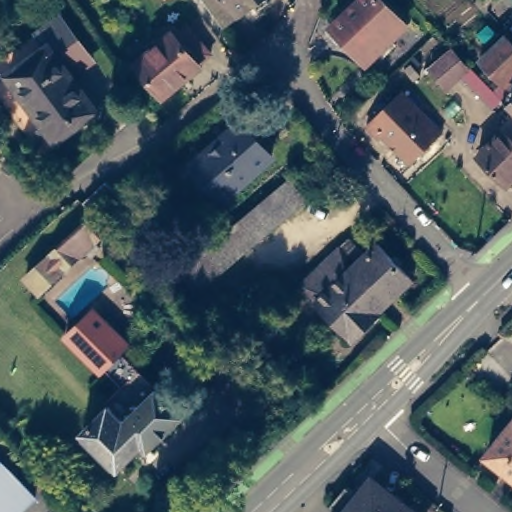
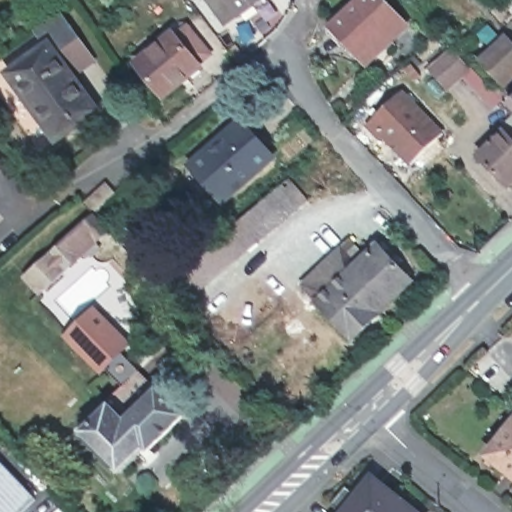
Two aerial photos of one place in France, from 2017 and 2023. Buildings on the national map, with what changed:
unchanged [(270,4),(259,12),(254,7),(225,27),(206,0),(267,0),(270,4)]
unchanged [(415,19),(377,54),(344,19),(365,0),(398,0),(415,19)]
unchanged [(90,44),(69,61),(102,104),(46,146),(0,84),(0,59),(66,12),(90,44)]
unchanged [(204,59),(192,70),(193,71),(158,99),(132,66),(166,39),(167,40),(180,31),(204,59)]
unchanged [(505,82),(483,60),(506,36),(512,42),(512,74),(505,82)]
unchanged [(225,55),(236,46),(244,55),(232,64),(225,55)]
unchanged [(501,97),(494,105),(463,72),(449,86),(433,69),(432,67),(454,46),(456,47),(501,97)]
unchanged [(402,88),(443,131),(411,162),(382,132),(380,135),(367,122),(402,88)]
unchanged [(508,131),(508,129),(506,127),(512,120),(512,182),(484,153),(508,131)]
unchanged [(266,149),(218,192),(187,157),(214,134),(219,138),(240,121),(266,149)]
unchanged [(289,176),(307,197),(244,250),(224,230),(289,176)]
unchanged [(314,226),(291,246),(278,232),(302,212),(314,226)]
unchanged [(109,229),(95,242),(101,247),(93,256),(86,250),(80,256),(77,257),(41,290),(27,276),(94,214),(109,229)]
unchanged [(244,250),(196,290),(177,268),(224,230),(244,250)]
unchanged [(362,252),(375,240),(410,277),(347,337),(312,300),(313,298),(298,282),(315,265),(314,264),(346,234),(362,252)]
unchanged [(61,336),(88,307),(128,342),(101,372),(61,336)]
unchanged [(82,431),(109,404),(124,419),(156,387),(183,413),(149,447),(143,442),(118,467),(82,431)]
unchanged [(486,448),(512,416),(512,468),(486,448)]
unchanged [(38,493),(19,512),(0,512),(0,454),(38,493)]
unchanged [(421,512),(348,512),(336,501),(352,483),(357,487),(363,481),(370,487),(379,477),(421,512)]

